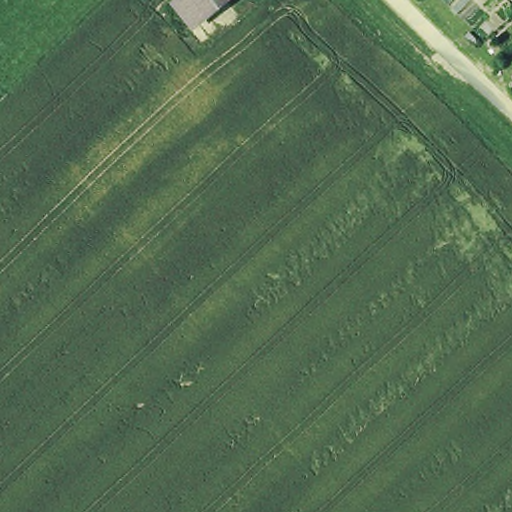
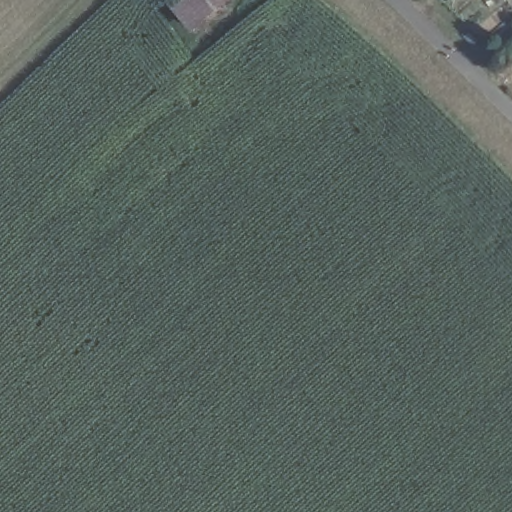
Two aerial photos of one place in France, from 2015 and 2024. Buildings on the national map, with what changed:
unchanged [(176,4),(180,0),(233,0),(196,32),(176,4)]

